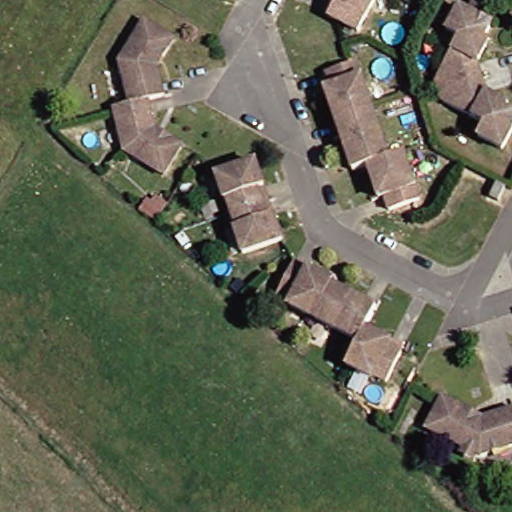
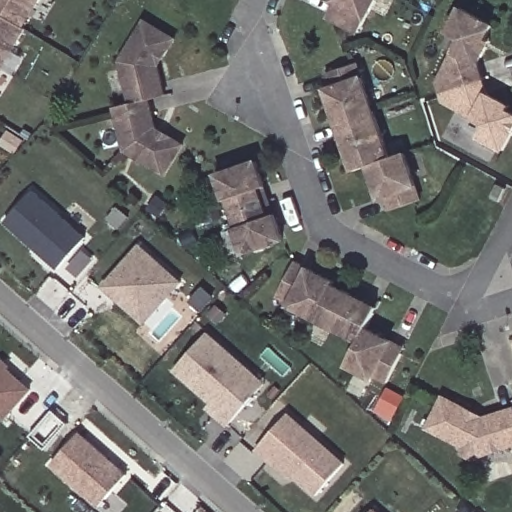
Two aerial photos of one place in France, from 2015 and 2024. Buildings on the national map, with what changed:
new [(21,26),(0,13),(0,0),(38,0),(21,26)]
unchanged [(349,28),(321,13),(328,0),(364,0),(349,28)]
unchanged [(512,118),(512,126),(499,150),(474,137),(481,125),(439,103),(432,81),(455,40),(443,33),(456,9),(488,26),(481,39),(486,42),(482,47),(474,64),(483,95),(499,104),(505,107),(503,112),(512,118)]
new [(25,29),(0,69),(0,13),(21,26),(25,29)]
unchanged [(178,140),(159,170),(119,146),(110,103),(125,99),(116,56),(140,17),(170,35),(160,53),(154,63),(159,91),(144,95),(149,123),(159,129),(178,140)]
unchanged [(363,165),(349,170),(343,153),(333,125),(327,106),(321,91),(328,88),(322,74),(353,64),(386,160),(400,156),(416,201),(385,211),(380,197),(374,199),(369,184),(363,165)]
unchanged [(244,254),(235,228),(238,227),(228,201),(226,202),(218,176),(257,163),(265,188),(275,215),(284,241),(244,254)]
unchanged [(507,189),(500,203),(491,198),(498,185),(507,189)]
new [(31,192),(84,238),(56,269),(4,222),(31,192)]
new [(131,315),(101,288),(139,247),(180,284),(154,313),(143,325),(131,315)]
unchanged [(398,355),(383,384),(369,377),(368,380),(343,366),(354,343),(284,307),(286,304),(273,296),(288,268),(290,263),(304,270),(330,283),(328,286),(373,308),(361,330),(387,343),(401,350),(398,355)]
new [(173,373),(206,335),(253,375),(264,385),(252,399),(227,427),(214,416),(207,409),(210,404),(173,373)]
new [(9,367),(7,369),(31,390),(5,419),(0,415),(0,362),(1,360),(9,367)]
unchanged [(457,454),(459,449),(421,428),(436,397),(469,414),(479,419),(511,409),(512,414),(512,445),(474,456),(472,455),(469,461),(457,454)]
new [(269,463),(255,451),(286,416),(343,465),(315,497),(290,476),(288,480),(269,463)]
new [(78,434),(127,475),(99,508),(50,466),(78,434)]
new [(374,512),(372,512),(373,511),(374,512)]

